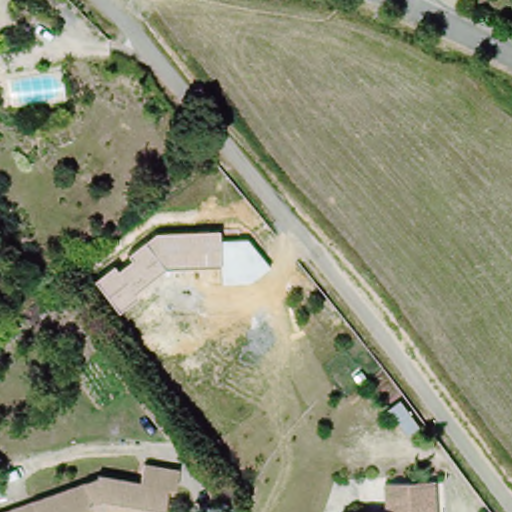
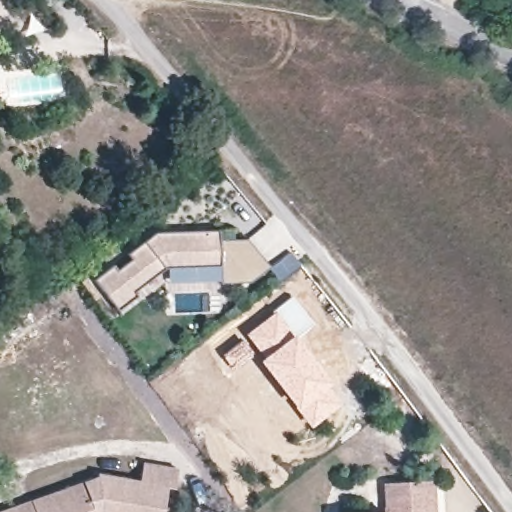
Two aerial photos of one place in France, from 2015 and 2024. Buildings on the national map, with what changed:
unchanged [(115,265),(118,268),(131,260),(128,255),(153,233),(220,230),(235,229),(235,239),(247,240),(270,268),(249,283),(221,285),(221,265),(165,269),(133,292),(138,298),(117,312),(95,280),(115,265)]
new [(341,403),(310,427),(258,360),(261,357),(245,335),(274,310),(291,296),(313,324),(296,338),(322,373),(341,403)]
new [(420,427),(407,436),(388,410),(400,401),(420,427)]
unchanged [(88,465),(143,476),(148,455),(172,460),(166,486),(160,485),(154,512),(0,512),(0,509),(86,473),(88,465)]
unchanged [(450,480),(451,512),(404,512),(403,480),(450,480)]

